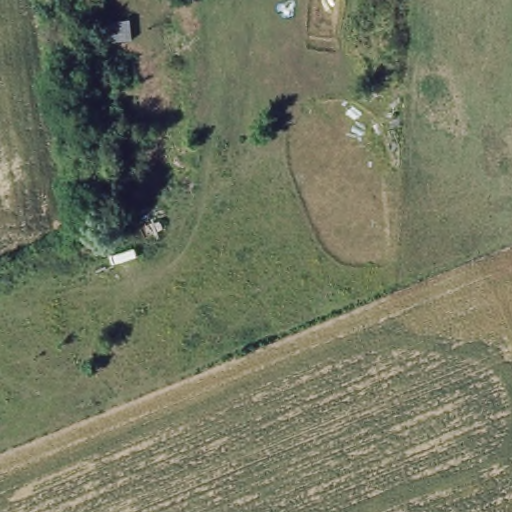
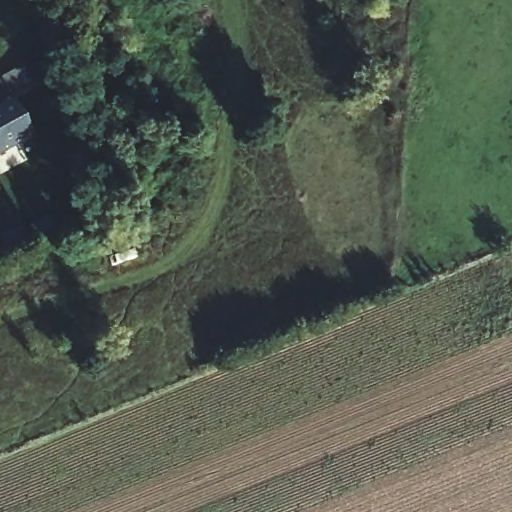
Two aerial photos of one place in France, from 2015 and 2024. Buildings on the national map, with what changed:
new [(34,137),(0,156),(0,105),(10,100),(34,137)]

